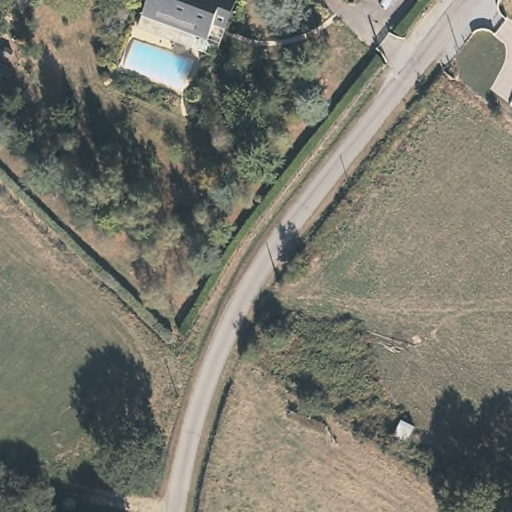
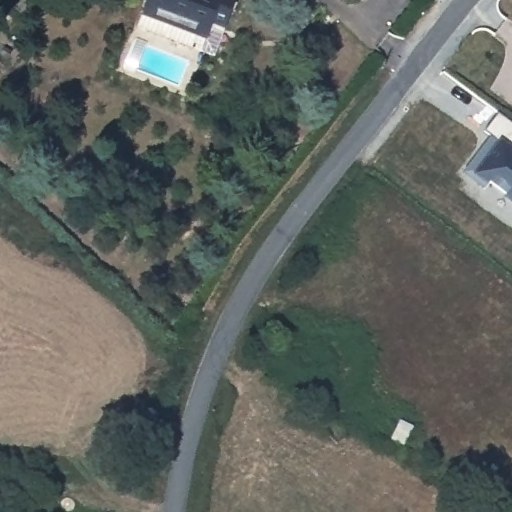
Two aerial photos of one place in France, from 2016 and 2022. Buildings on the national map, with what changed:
unchanged [(216,12),(211,25),(200,21),(196,36),(137,18),(144,0),(233,0),(227,15),(216,12)]
new [(492,135),(485,130),(499,112),(512,122),(512,203),(504,197),(507,195),(490,181),(484,188),(464,172),(492,135)]

